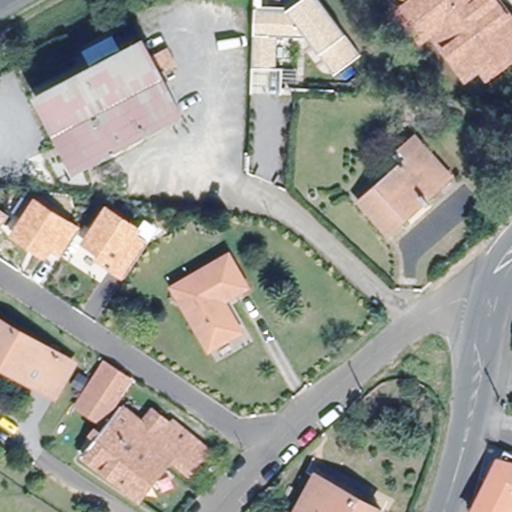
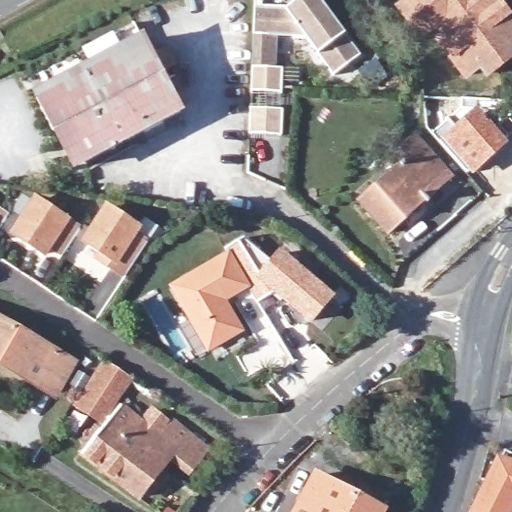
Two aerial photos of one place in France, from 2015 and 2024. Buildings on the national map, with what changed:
unchanged [(335,76),(317,54),(307,38),(277,36),(275,68),(282,69),(282,95),(249,95),(252,6),(287,7),(297,0),(322,0),(362,55),(335,76)]
unchanged [(421,44),(395,8),(403,2),(401,0),(503,0),(512,13),(512,62),(485,81),(480,72),(465,83),(432,37),(421,44)]
unchanged [(145,60),(162,52),(170,69),(152,77),(172,115),(134,135),(64,168),(29,96),(137,44),(145,60)]
new [(449,117),(466,101),(466,100),(472,101),(477,105),(508,143),(472,175),(433,132),(449,117)]
unchanged [(361,198),(396,166),(390,159),(410,141),(447,182),(392,232),(361,198)]
unchanged [(63,258),(50,249),(45,257),(14,236),(36,204),(80,233),(63,258)]
unchanged [(107,270),(111,264),(81,245),(104,211),(134,231),(122,250),(135,258),(121,280),(107,270)]
unchanged [(0,223),(0,213),(5,216),(0,223)]
new [(336,297),(312,324),(276,295),(257,304),(250,292),(252,290),(232,256),(229,250),(244,240),(271,260),(279,250),(336,297)]
unchanged [(252,290),(221,307),(238,340),(205,358),(169,294),(232,256),(252,290)]
unchanged [(32,379),(30,382),(0,366),(0,322),(64,358),(47,388),(32,379)]
unchanged [(90,421),(70,407),(101,362),(130,381),(116,401),(99,426),(90,421)]
unchanged [(207,454),(194,473),(175,459),(139,506),(82,462),(121,412),(138,425),(150,411),(170,427),(170,426),(207,454)]
unchanged [(500,447),(512,453),(512,494),(510,493),(500,512),(473,512),(467,510),(500,447)]
unchanged [(310,480),(311,477),(378,512),(293,512),(310,480)]

